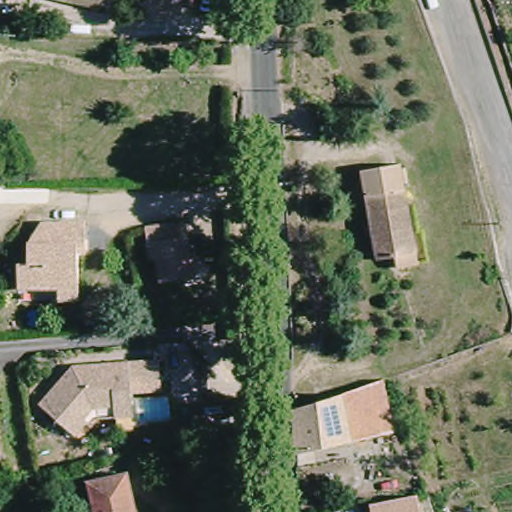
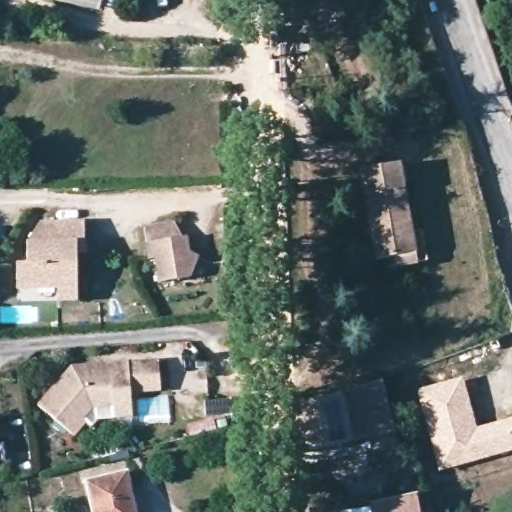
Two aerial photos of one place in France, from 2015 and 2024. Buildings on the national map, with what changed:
unchanged [(40,0),(43,0),(43,1),(40,0)]
unchanged [(95,0),(95,2),(87,0),(95,0)]
unchanged [(430,260),(395,266),(393,256),(388,257),(376,258),(360,171),(368,170),(399,165),(411,232),(424,230),(430,260)]
unchanged [(86,252),(78,251),(78,264),(79,303),(58,303),(58,290),(18,289),(18,263),(29,263),(28,242),(40,222),(86,221),(86,252)]
unchanged [(185,262),(193,267),(189,287),(152,287),(152,262),(145,262),(145,231),(174,231),(180,246),(185,246),(185,262)]
unchanged [(112,420),(112,408),(89,410),(80,421),(83,424),(71,438),(35,407),(69,369),(94,367),(108,366),(156,362),(158,391),(128,394),(128,398),(129,418),(112,420)]
new [(462,377),(477,427),(512,418),(512,451),(439,472),(415,390),(462,377)]
unchanged [(295,411),(382,383),(395,439),(298,458),(295,411)]
unchanged [(90,483),(135,473),(139,509),(140,512),(94,512),(90,483)]
unchanged [(420,492),(423,512),(368,512),(367,503),(420,492)]

